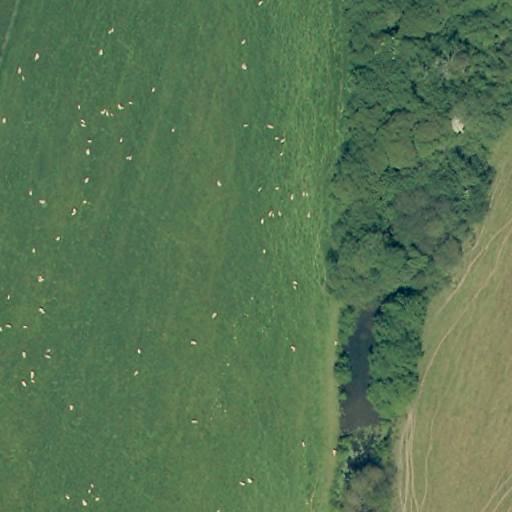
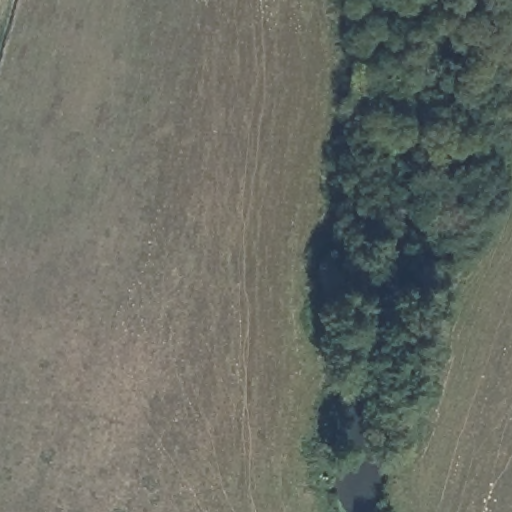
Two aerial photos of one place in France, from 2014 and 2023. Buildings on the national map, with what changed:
[]

